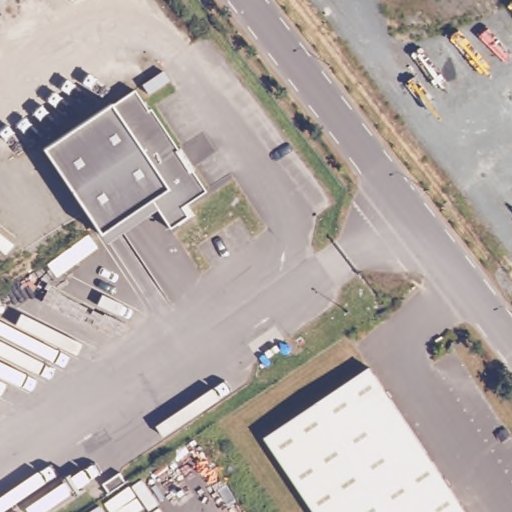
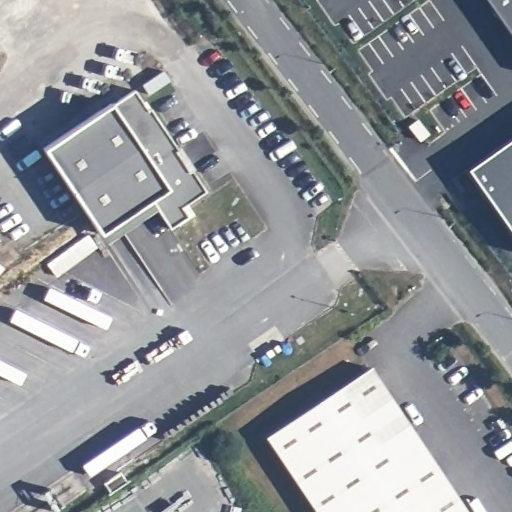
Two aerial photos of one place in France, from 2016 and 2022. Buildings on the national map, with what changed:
new [(486,0),(512,0),(512,37),(486,0)]
unchanged [(115,103),(137,89),(150,109),(153,107),(180,149),(183,147),(195,166),(193,167),(208,190),(184,206),(189,214),(170,226),(151,198),(100,232),(47,152),(44,147),(60,136),(114,101),(115,103)]
new [(512,139),(512,232),(468,170),(512,139)]
new [(88,235),(97,246),(56,276),(48,264),(88,235)]
unchanged [(402,415),(466,512),(316,512),(264,435),(369,366),(402,415)]

